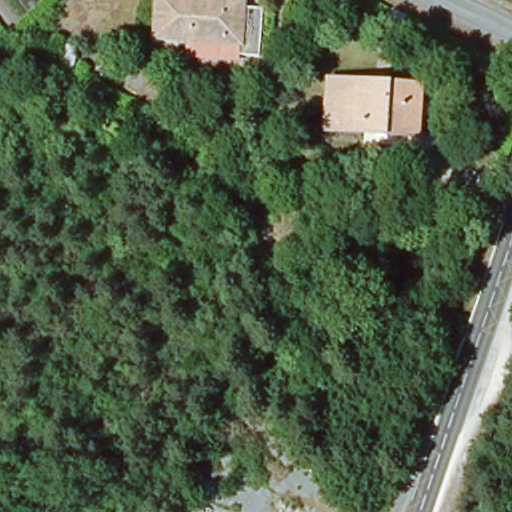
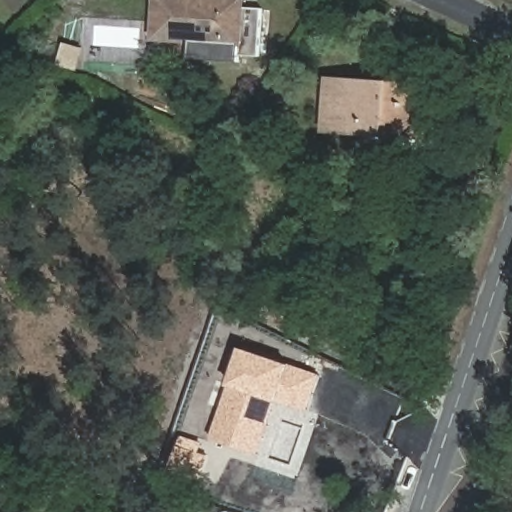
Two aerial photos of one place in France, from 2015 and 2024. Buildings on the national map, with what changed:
unchanged [(243,8),(262,10),(260,57),(238,56),(239,46),(154,40),(156,0),(243,0),(243,8)]
unchanged [(74,70),(59,65),(61,54),(64,45),(78,49),(76,61),(74,70)]
unchanged [(417,136),(323,130),(326,81),(421,88),(417,136)]
new [(212,440),(230,387),(242,348),(291,363),(320,374),(307,411),(279,401),(260,455),(212,440)]
new [(173,469),(182,437),(200,442),(198,453),(206,456),(199,477),(173,469)]

